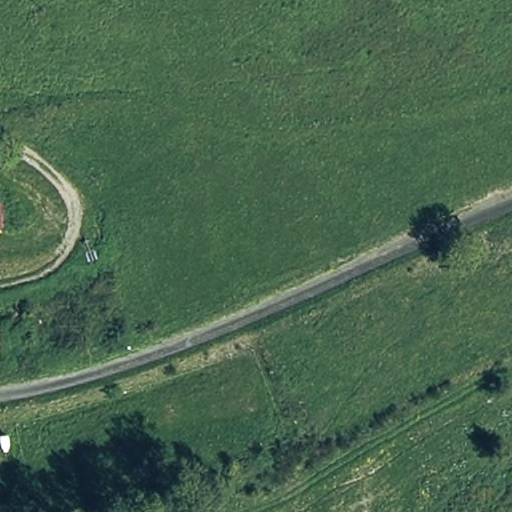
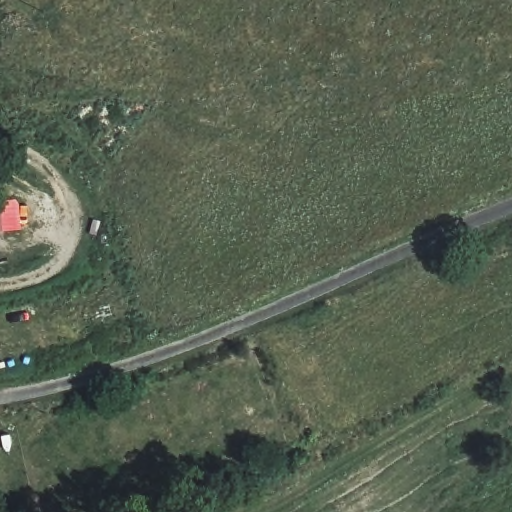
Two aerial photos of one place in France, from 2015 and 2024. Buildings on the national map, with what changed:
unchanged [(3,231),(0,231),(0,198),(2,198),(3,231)]

